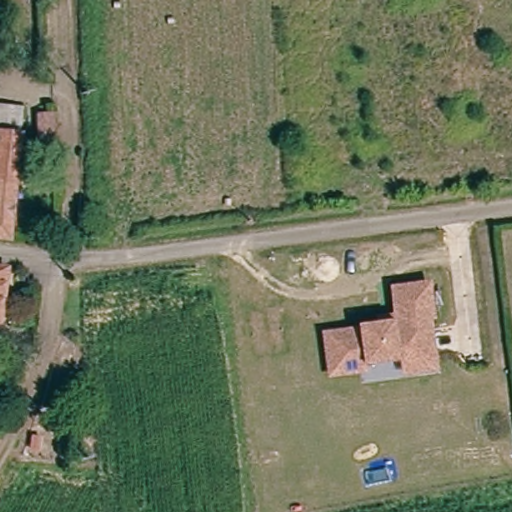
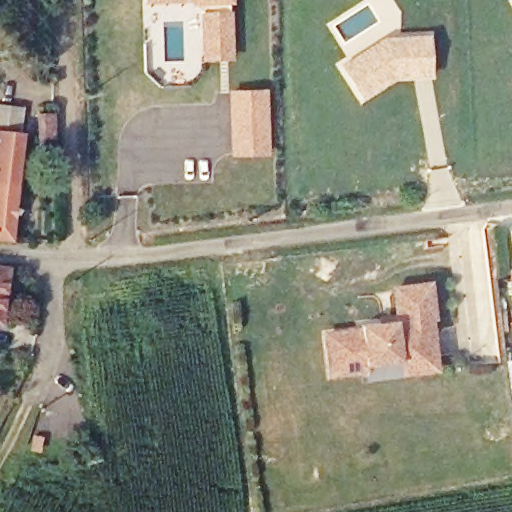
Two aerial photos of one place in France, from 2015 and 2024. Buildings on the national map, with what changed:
new [(188,4),(145,4),(145,0),(230,0),(230,4),(233,59),(200,61),(200,13),(188,4)]
new [(512,0),(512,4),(509,0),(512,0)]
new [(375,40),(385,34),(432,34),(433,79),(393,81),(362,101),(337,65),(375,40)]
new [(228,91),(267,89),(269,156),(231,158),(228,91)]
unchanged [(14,115),(1,238),(0,238),(0,112),(14,115)]
unchanged [(36,116),(51,117),(53,143),(37,140),(36,116)]
unchanged [(12,265),(5,320),(0,319),(0,264),(12,265)]
new [(512,321),(507,270),(512,270),(512,321)]
unchanged [(359,364),(360,369),(325,374),(319,334),(354,330),(353,325),(374,322),(373,317),(391,315),(387,288),(422,283),(425,316),(422,316),(424,338),(428,367),(397,371),(396,360),(359,364)]

